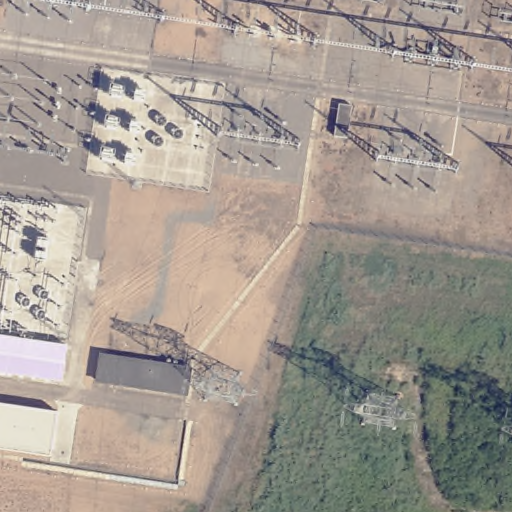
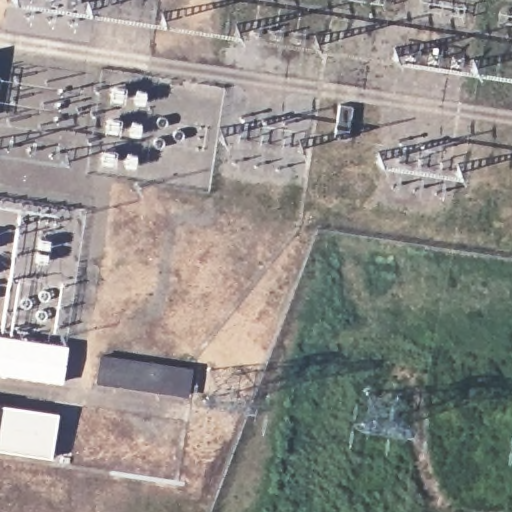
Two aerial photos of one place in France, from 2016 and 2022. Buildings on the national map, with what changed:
unchanged [(0,372),(0,333),(66,343),(60,380),(0,372)]
unchanged [(190,396),(97,384),(103,353),(193,368),(190,396)]
unchanged [(0,403),(56,412),(50,455),(0,448),(0,403)]

